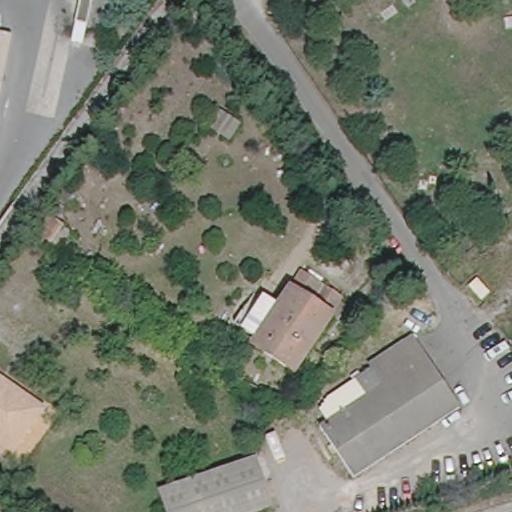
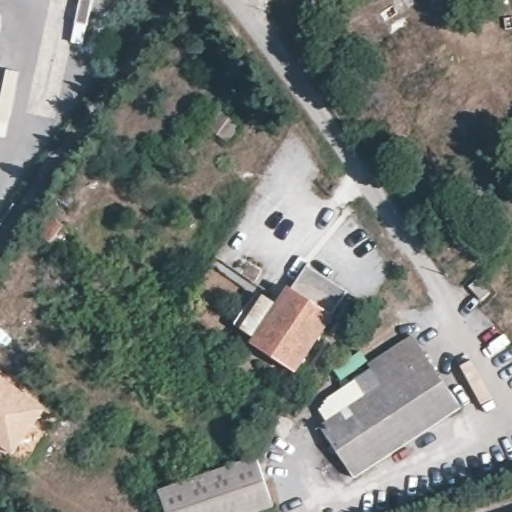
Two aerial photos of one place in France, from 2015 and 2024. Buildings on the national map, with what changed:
unchanged [(72,21),(76,0),(90,0),(85,24),(72,21)]
unchanged [(218,109),(240,124),(229,141),(207,125),(218,109)]
unchanged [(63,226),(50,243),(37,233),(50,216),(63,226)]
unchanged [(310,272),(350,298),(341,313),(343,314),(304,373),(261,345),(265,339),(253,330),(275,296),(288,305),(310,272)]
unchanged [(371,370),(368,364),(413,336),(460,408),(353,478),(320,427),(365,397),(355,381),(371,370)]
unchanged [(48,410),(17,453),(0,441),(0,375),(48,410)]
unchanged [(158,492),(255,459),(272,507),(257,512),(166,512),(158,492)]

